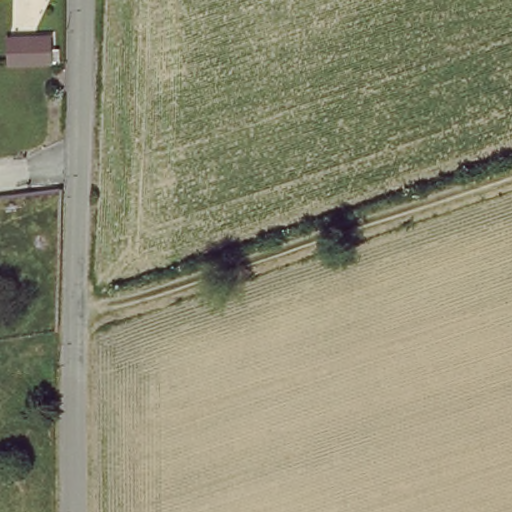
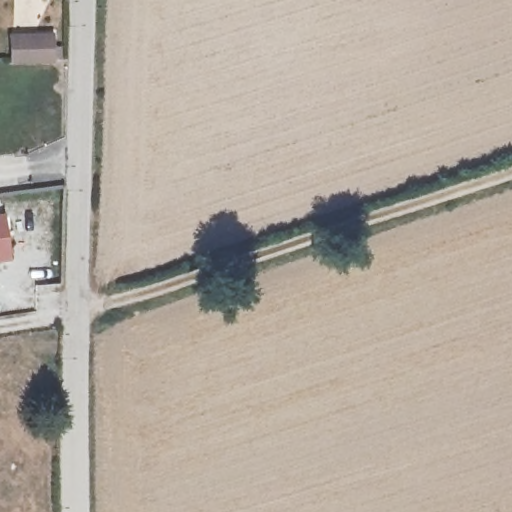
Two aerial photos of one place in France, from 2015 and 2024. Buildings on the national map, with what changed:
unchanged [(57,45),(58,70),(54,70),(18,72),(17,47),(57,45)]
new [(0,214),(3,213),(9,260),(0,262),(0,214)]

